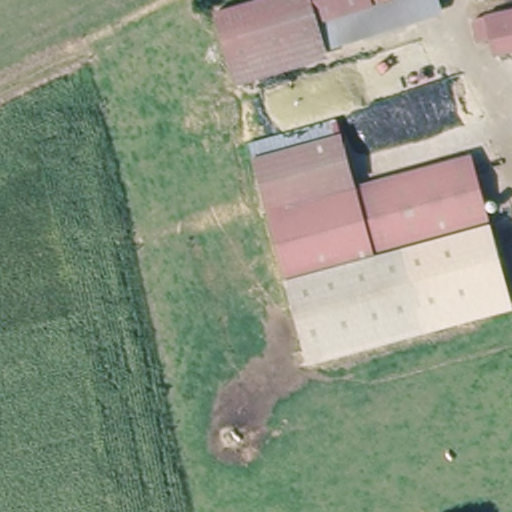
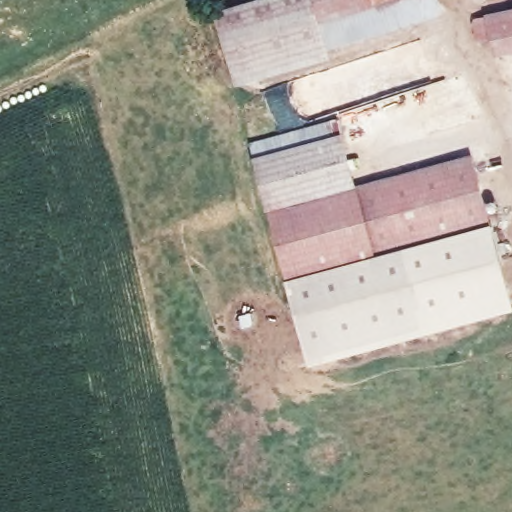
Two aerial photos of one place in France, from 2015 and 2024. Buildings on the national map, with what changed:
unchanged [(337,61),(244,95),(215,22),(270,0),(316,0),(332,46),(337,61)]
unchanged [(332,46),(316,0),(440,0),(441,2),(332,46)]
unchanged [(512,52),(493,56),(491,41),(475,44),(471,22),(512,14),(512,52)]
unchanged [(352,172),(266,196),(252,145),(338,122),(352,172)]
unchanged [(488,214),(285,268),(266,197),(469,143),(488,214)]
unchanged [(512,300),(512,311),(311,366),(288,281),(285,268),(488,214),(491,225),(512,300)]

